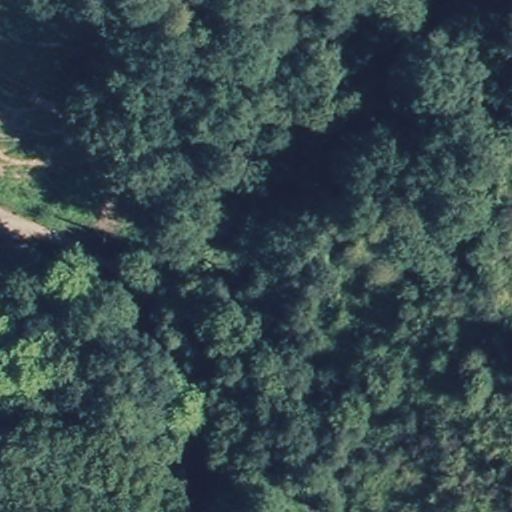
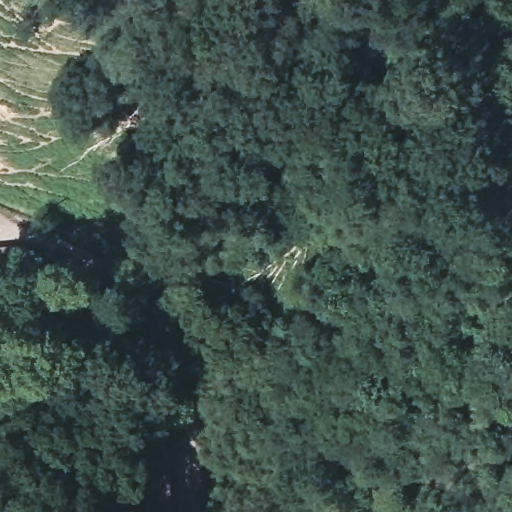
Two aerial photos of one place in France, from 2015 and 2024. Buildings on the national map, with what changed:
unchanged [(39,266),(0,270),(0,243),(34,249),(39,266)]
unchanged [(169,431),(171,462),(131,464),(128,432),(169,431)]
unchanged [(163,473),(164,512),(132,512),(130,474),(163,473)]

